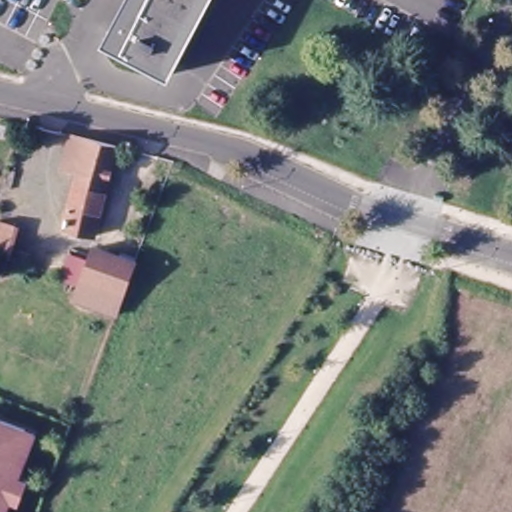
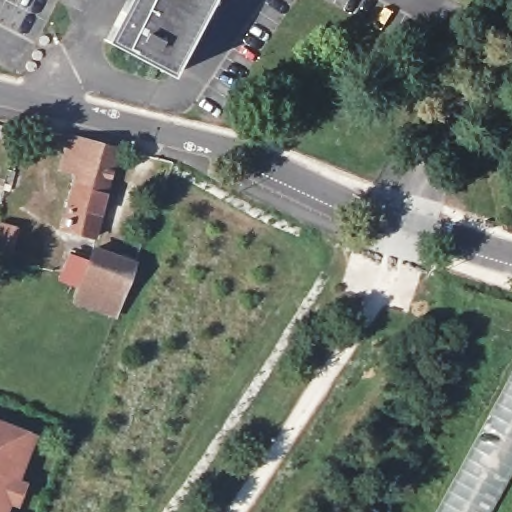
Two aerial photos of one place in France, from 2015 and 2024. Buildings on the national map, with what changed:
unchanged [(114,41),(107,38),(128,0),(137,0),(114,41)]
unchanged [(114,41),(137,0),(205,0),(167,70),(114,41)]
unchanged [(205,0),(215,0),(175,74),(167,70),(205,0)]
unchanged [(97,237),(65,231),(77,176),(63,172),(70,136),(118,148),(97,237)]
unchanged [(6,255),(0,254),(0,223),(15,228),(6,255)]
unchanged [(80,293),(60,285),(65,275),(70,259),(91,267),(96,255),(135,271),(116,323),(74,306),(80,293)]
new [(436,512),(512,371),(512,474),(491,512),(436,512)]
unchanged [(18,481),(26,484),(18,506),(10,503),(6,512),(0,512),(0,423),(35,436),(18,481)]

